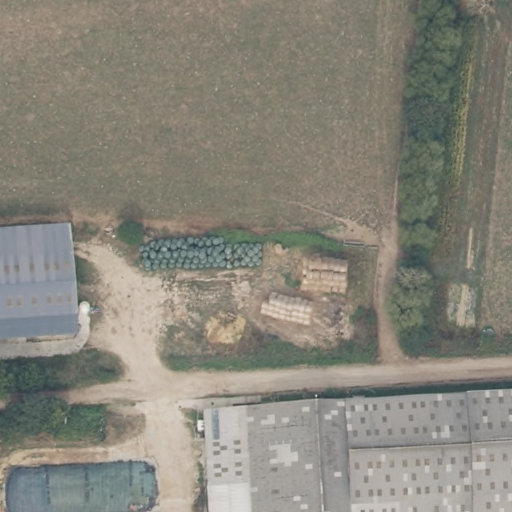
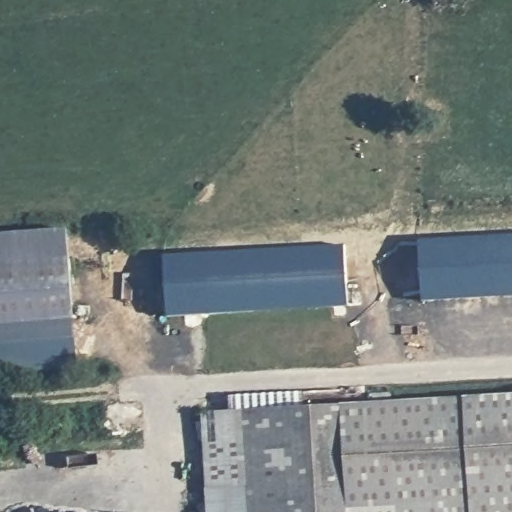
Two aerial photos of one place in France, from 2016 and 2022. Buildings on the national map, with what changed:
unchanged [(77,325),(0,330),(0,240),(72,235),(77,325)]
new [(418,241),(512,235),(512,296),(421,302),(418,241)]
new [(162,255),(344,245),(345,273),(353,273),(352,307),(164,317),(162,255)]
new [(76,368),(0,374),(0,330),(74,325),(76,368)]
unchanged [(337,481),(338,408),(512,401),(512,512),(373,512),(371,481),(337,481)]
unchanged [(337,481),(202,485),(200,412),(338,406),(338,408),(337,481)]
unchanged [(373,512),(202,512),(202,485),(337,481),(371,481),(373,512)]

